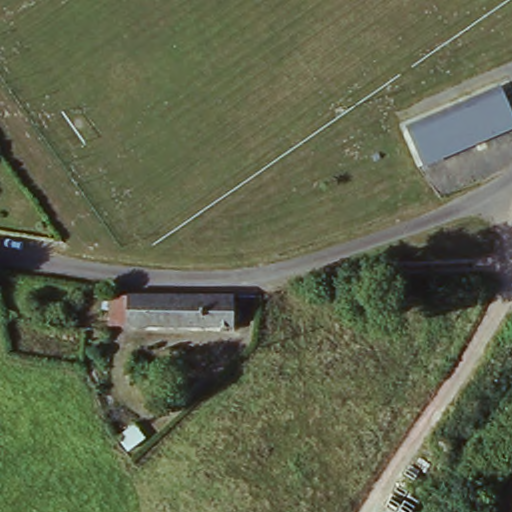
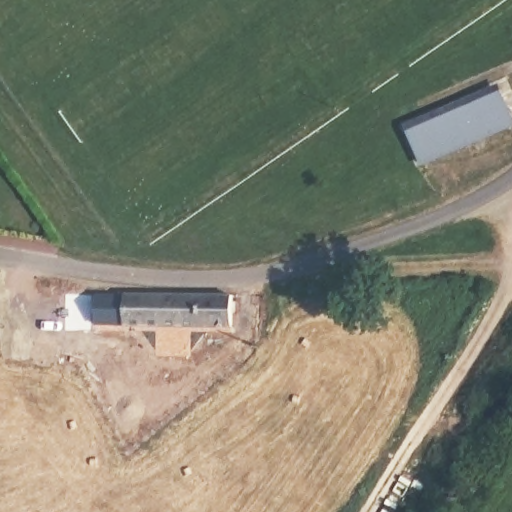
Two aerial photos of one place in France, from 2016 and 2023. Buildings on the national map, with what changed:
unchanged [(505,92),(512,109),(512,128),(428,163),(414,130),(505,92)]
unchanged [(227,326),(122,325),(105,325),(106,293),(123,293),(229,295),(227,326)]
unchanged [(136,425),(144,438),(129,449),(120,437),(136,425)]

